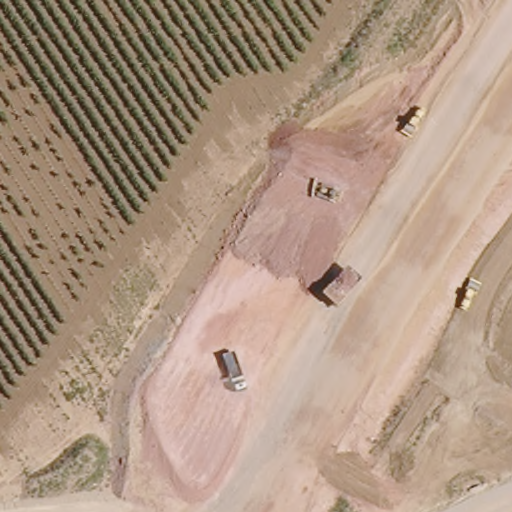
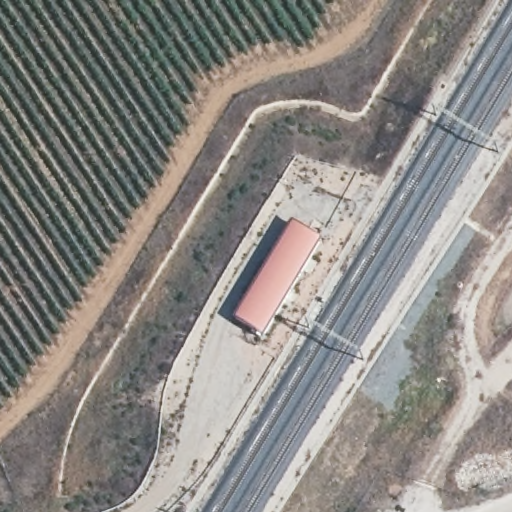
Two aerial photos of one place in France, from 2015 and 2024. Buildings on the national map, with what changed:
new [(318,239),(259,340),(233,325),(292,227),(318,239)]

